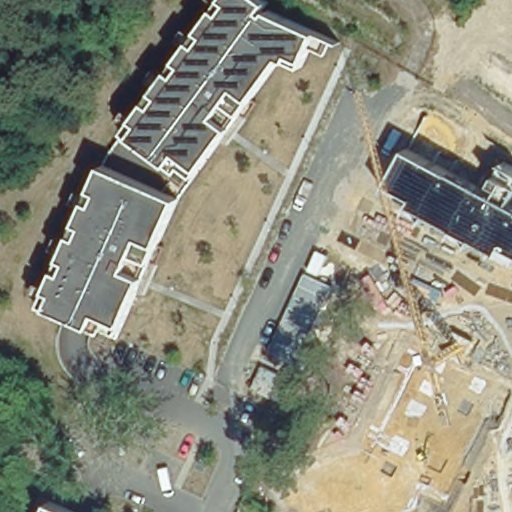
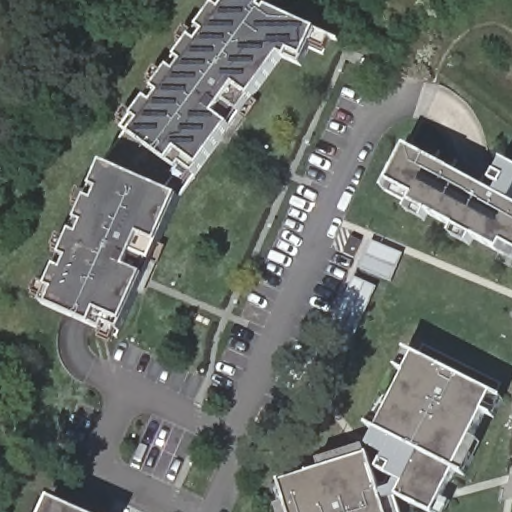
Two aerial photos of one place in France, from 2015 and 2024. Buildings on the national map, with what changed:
unchanged [(267,8),(318,29),(303,62),(290,55),(288,62),(280,59),(190,179),(126,131),(128,128),(117,121),(125,109),(137,117),(159,87),(149,80),(157,69),(166,77),(188,47),(179,40),(187,28),(197,36),(219,6),(211,0),(268,0),(271,2),(267,8)]
unchanged [(412,203),(415,196),(388,183),(407,149),(487,190),(502,162),(512,168),(512,257),(412,203)]
unchanged [(117,337),(42,306),(46,298),(34,293),(39,281),(51,286),(66,252),(55,247),(59,235),(71,239),(85,205),(76,201),(80,190),(90,194),(102,165),(178,197),(117,337)]
new [(371,240),(398,252),(387,279),(359,268),(371,240)]
new [(332,326),(355,277),(376,288),(353,336),(332,326)]
demolished [(411,354),(420,336),(430,341),(422,359),(411,354)]
new [(291,512),(282,482),(369,455),(382,493),(390,490),(397,480),(381,472),(387,458),(371,448),(378,432),(417,356),(494,395),(455,472),(436,512),(427,512),(400,498),(396,499),(400,512),(291,512)]
demolished [(511,455),(501,451),(446,425),(459,394),(512,419),(512,512),(473,512),(493,467),(503,472),(511,455)]
unchanged [(78,512),(48,512),(53,501),(78,512)]

